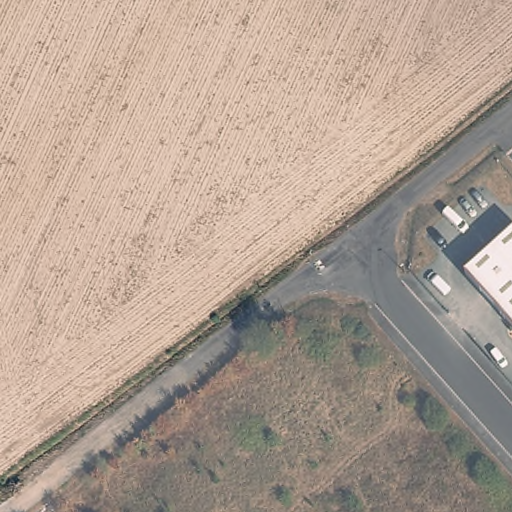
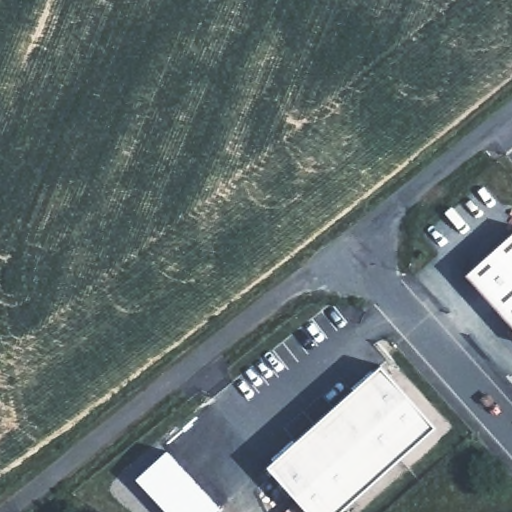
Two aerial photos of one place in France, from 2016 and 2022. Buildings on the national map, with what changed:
unchanged [(464,273),(512,231),(512,331),(464,273)]
new [(434,425),(337,512),(308,512),(268,466),(381,365),(434,425)]

